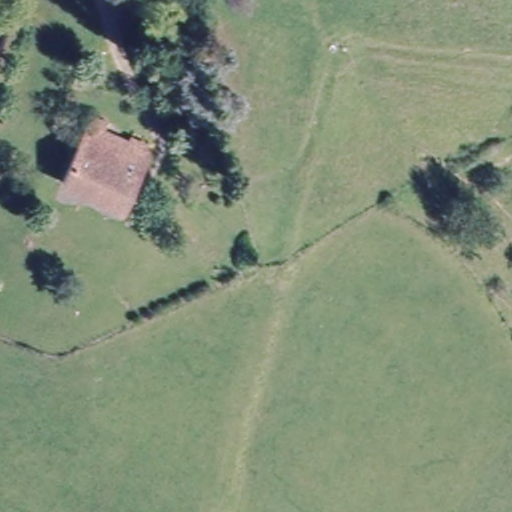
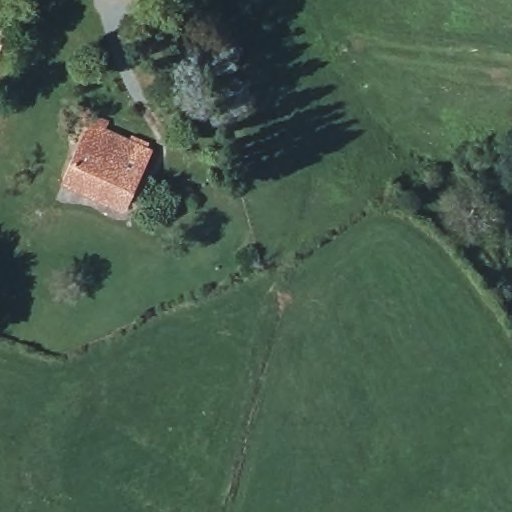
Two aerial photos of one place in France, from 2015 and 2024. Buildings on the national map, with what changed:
unchanged [(126,215),(58,197),(79,124),(146,143),(126,215)]

